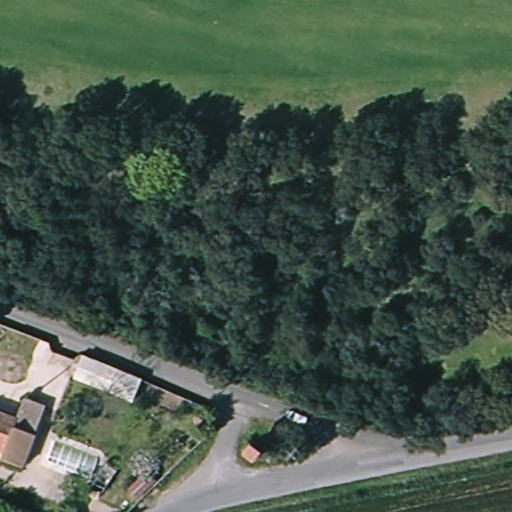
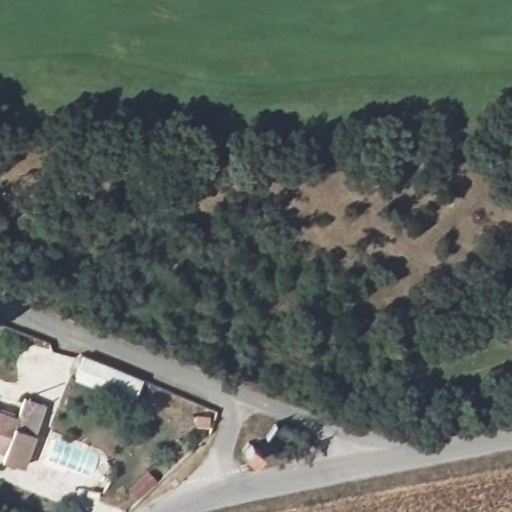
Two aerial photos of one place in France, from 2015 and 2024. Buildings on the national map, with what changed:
unchanged [(143,378),(133,403),(73,378),(83,355),(143,378)]
unchanged [(48,404),(36,434),(22,468),(0,459),(0,414),(14,420),(25,394),(48,404)]

